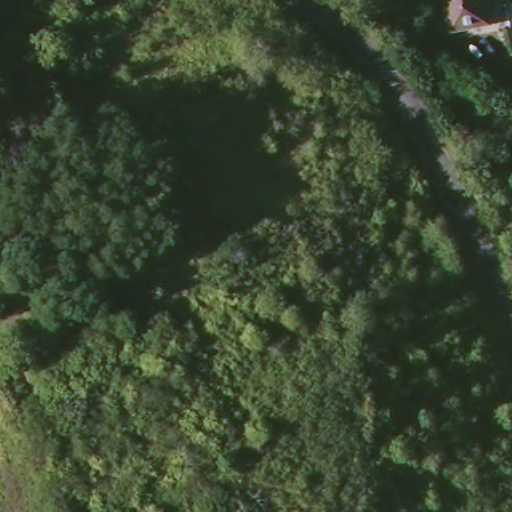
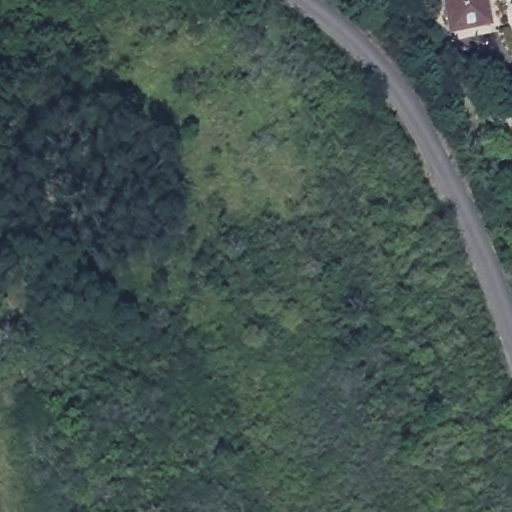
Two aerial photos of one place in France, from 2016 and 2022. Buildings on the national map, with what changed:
unchanged [(479,19),(444,26),(439,0),(475,0),(479,19)]

